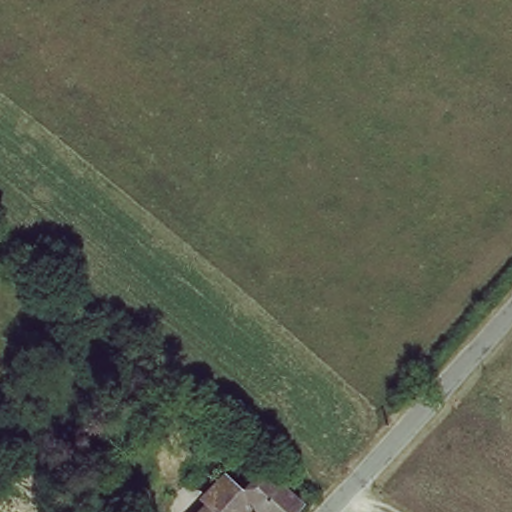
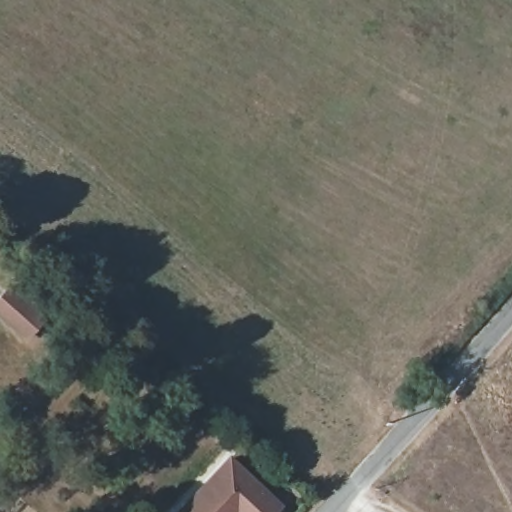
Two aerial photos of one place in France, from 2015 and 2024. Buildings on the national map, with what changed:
new [(18,293),(24,286),(45,305),(39,311),(47,318),(25,343),(0,321),(0,294),(9,284),(18,293)]
unchanged [(304,505),(298,512),(260,512),(251,504),(237,492),(243,485),(260,467),(304,505)]
unchanged [(229,475),(243,485),(237,492),(251,504),(244,512),(218,512),(206,501),(229,475)]
unchanged [(218,512),(197,512),(206,501),(218,512)]

